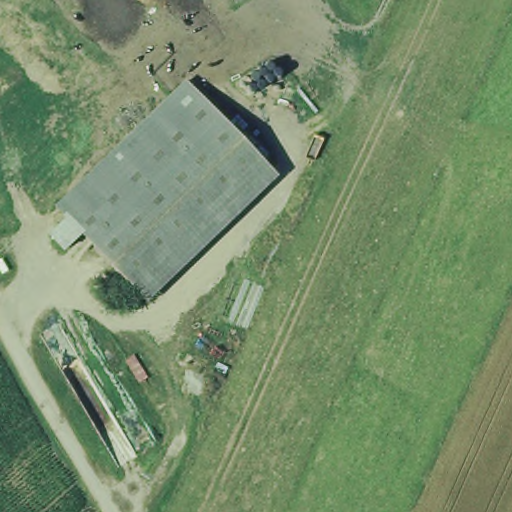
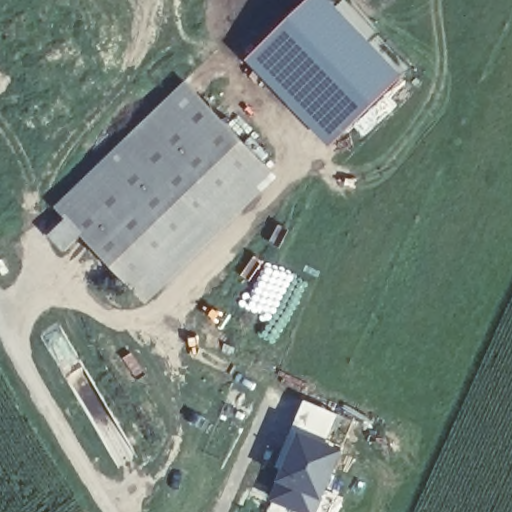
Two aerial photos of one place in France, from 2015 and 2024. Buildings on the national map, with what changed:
new [(300,0),(325,0),(405,76),(327,146),(242,57),(300,0)]
unchanged [(152,289),(102,244),(87,262),(69,245),(84,227),(72,217),(192,82),(274,160),(152,289)]
unchanged [(0,253),(1,252),(3,255),(7,252),(12,260),(9,263),(11,267),(1,272),(0,271),(0,253)]
new [(304,399),(339,413),(327,440),(293,425),(304,399)]
new [(293,425),(327,440),(345,449),(319,512),(298,512),(267,499),(276,466),(293,425)]

